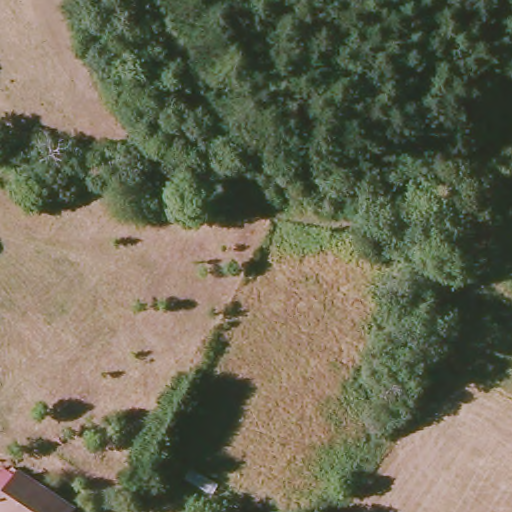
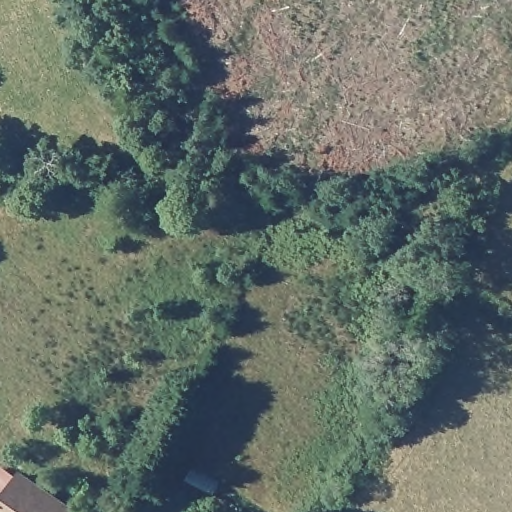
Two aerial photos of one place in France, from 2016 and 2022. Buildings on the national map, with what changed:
unchanged [(21,470),(75,505),(70,512),(0,512),(0,507),(21,470)]

